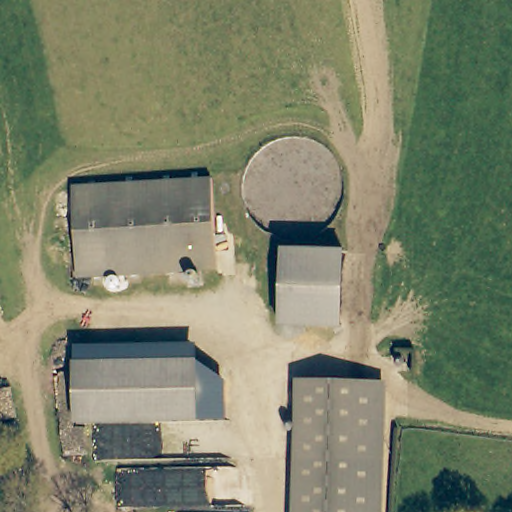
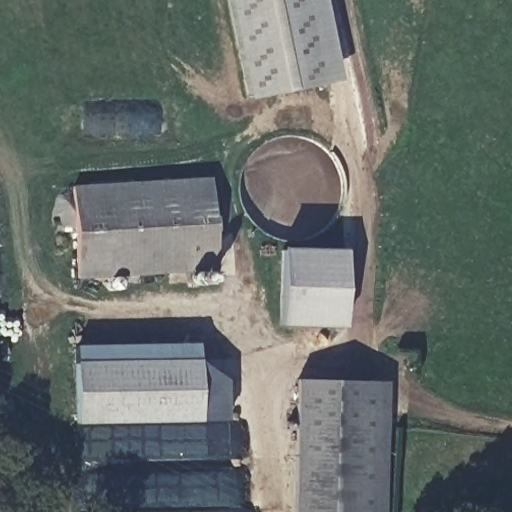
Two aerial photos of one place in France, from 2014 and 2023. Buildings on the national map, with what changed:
new [(341,80),(249,100),(228,0),(325,0),(341,80)]
unchanged [(76,278),(70,188),(212,181),(219,270),(76,278)]
unchanged [(278,324),(278,249),(340,250),(340,325),(278,324)]
unchanged [(200,418),(79,421),(78,363),(199,360),(200,418)]
unchanged [(388,385),(383,512),(295,512),(301,380),(388,385)]

